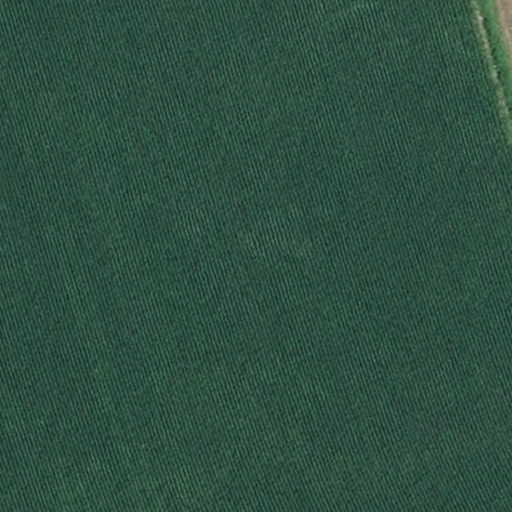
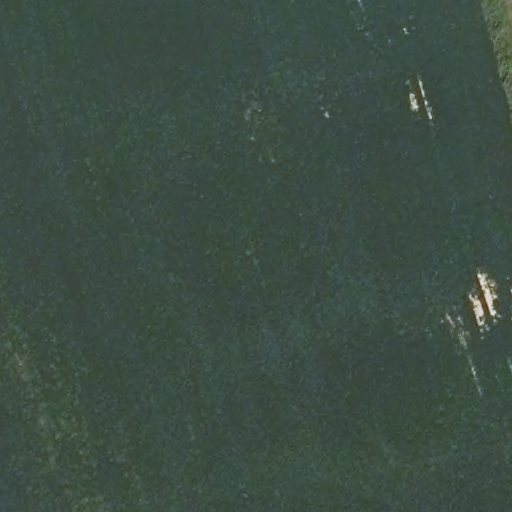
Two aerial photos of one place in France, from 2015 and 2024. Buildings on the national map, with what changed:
[]

